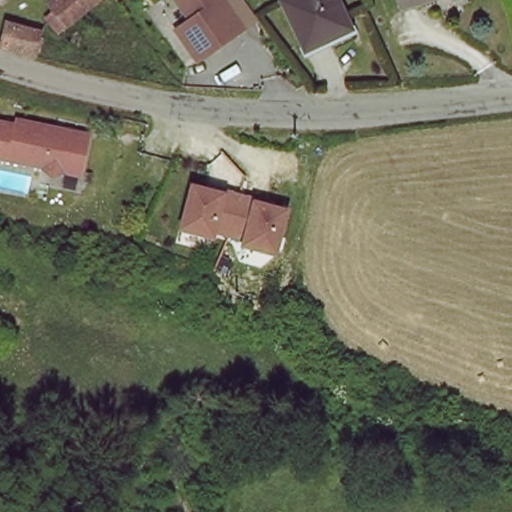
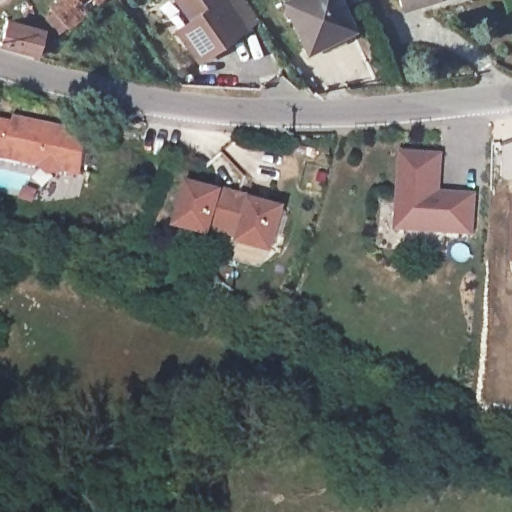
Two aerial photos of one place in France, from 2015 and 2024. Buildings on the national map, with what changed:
unchanged [(50,6),(57,0),(101,0),(88,11),(66,28),(50,6)]
unchanged [(167,34),(181,24),(164,0),(229,0),(246,25),(188,65),(167,34)]
unchanged [(288,1),(291,0),(343,0),(354,26),(326,38),(329,44),(311,52),(288,1)]
unchanged [(401,5),(399,0),(417,0),(401,5)]
unchanged [(41,38),(36,54),(0,43),(0,32),(3,25),(6,24),(41,38)]
unchanged [(79,178),(0,160),(0,118),(13,121),(14,114),(87,134),(79,178)]
new [(400,152),(445,153),(443,192),(478,193),(475,237),(395,232),(400,152)]
unchanged [(276,252),(174,229),(185,181),(288,207),(276,252)]

